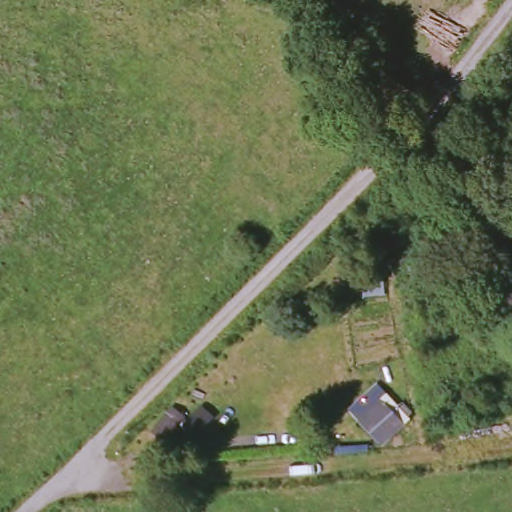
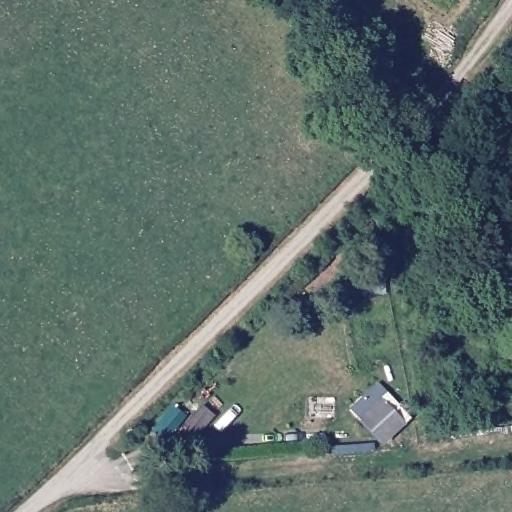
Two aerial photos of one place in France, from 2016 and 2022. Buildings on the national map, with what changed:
unchanged [(376,393),(400,414),(377,437),(356,416),(376,393)]

